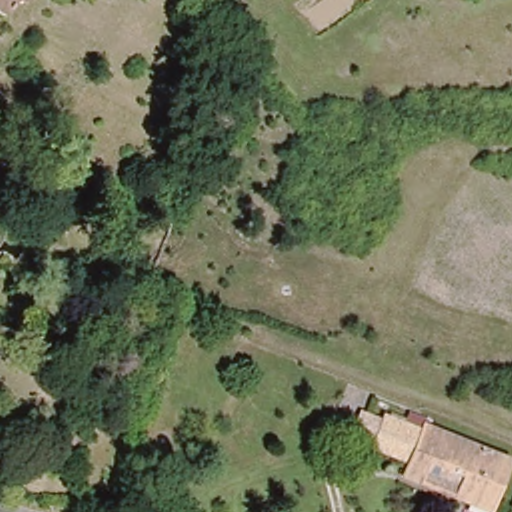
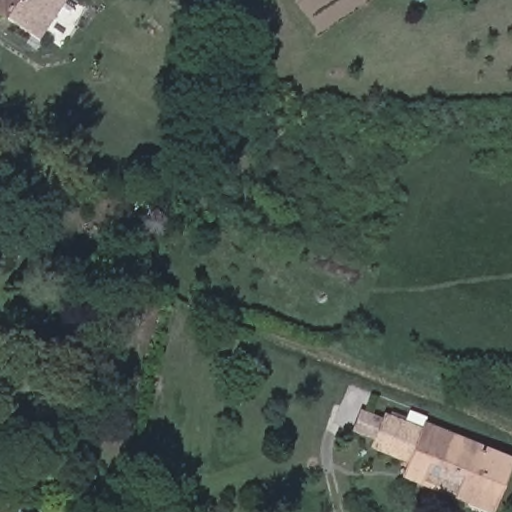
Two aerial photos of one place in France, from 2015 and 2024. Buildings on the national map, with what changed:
unchanged [(0,11),(0,0),(13,0),(4,13),(0,11)]
new [(22,0),(23,0),(64,0),(39,37),(4,13),(13,0),(22,0)]
unchanged [(427,427),(512,466),(512,468),(492,512),(490,512),(456,497),(465,476),(433,462),(423,481),(406,474),(412,460),(375,444),(377,439),(362,432),(371,414),(385,420),(387,415),(425,432),(427,427)]

